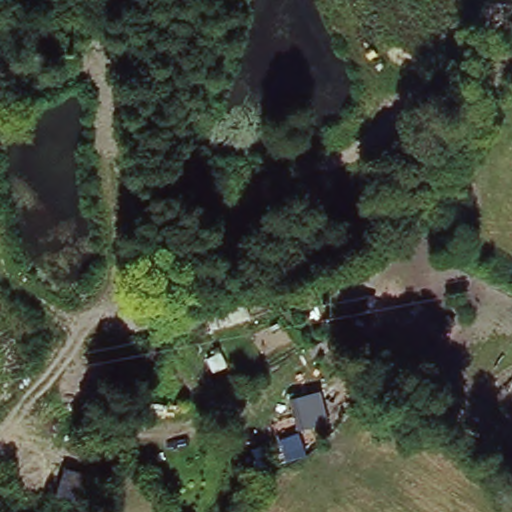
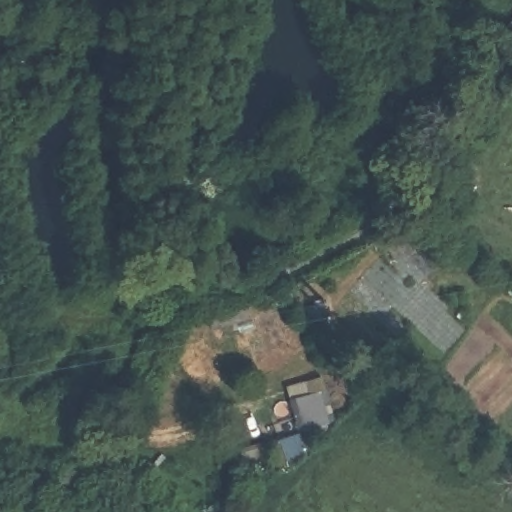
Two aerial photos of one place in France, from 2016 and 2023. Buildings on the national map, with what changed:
unchanged [(302,445),(286,401),(320,391),(335,436),(302,445)]

